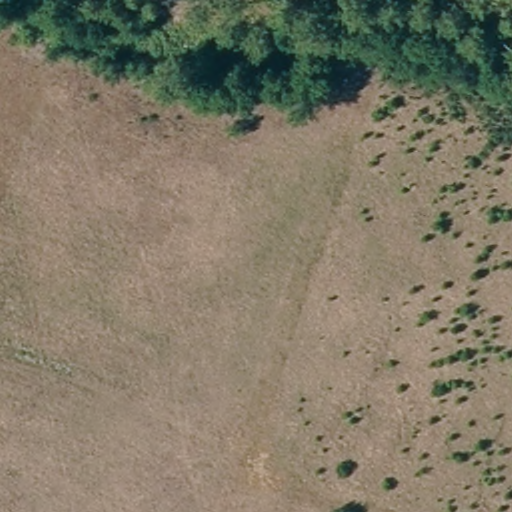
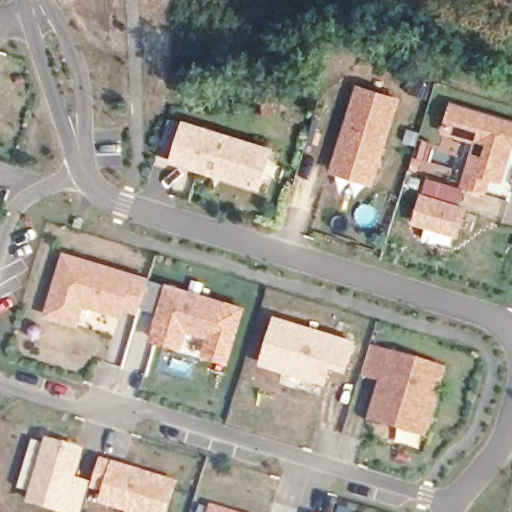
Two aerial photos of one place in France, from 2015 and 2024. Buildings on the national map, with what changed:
new [(331,171),(358,84),(401,99),(375,186),(331,171)]
new [(462,185),(475,141),(442,132),(452,102),(512,120),(512,149),(502,181),(491,179),(488,193),(462,185)]
new [(171,163),(184,120),(275,148),(261,190),(171,163)]
new [(413,222),(423,192),(467,206),(459,236),(413,222)]
new [(160,309),(140,303),(139,312),(124,308),(122,315),(85,305),(80,325),(45,315),(65,250),(150,276),(150,279),(167,282),(225,300),(214,337),(157,321),(160,309)]
new [(260,363),(276,315),(356,339),(347,371),(331,366),(326,384),(260,363)]
new [(364,374),(372,344),(447,366),(427,436),(370,420),(381,379),(364,374)]
new [(47,438),(84,447),(77,477),(91,481),(84,512),(59,512),(28,503),(47,438)]
new [(101,502),(105,491),(92,487),(101,457),(115,461),(180,481),(169,512),(128,512),(128,511),(101,502)]
new [(241,512),(209,512),(211,503),(241,512)]

